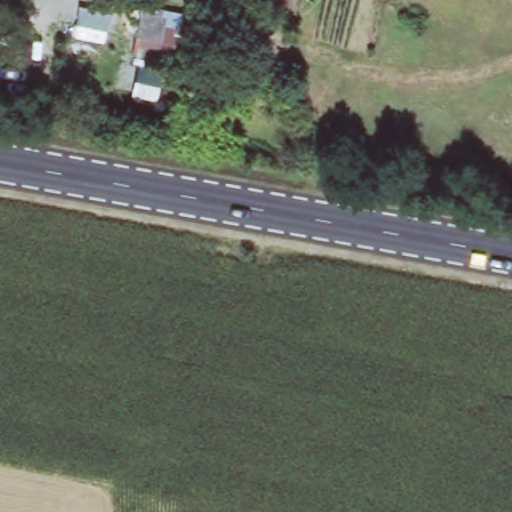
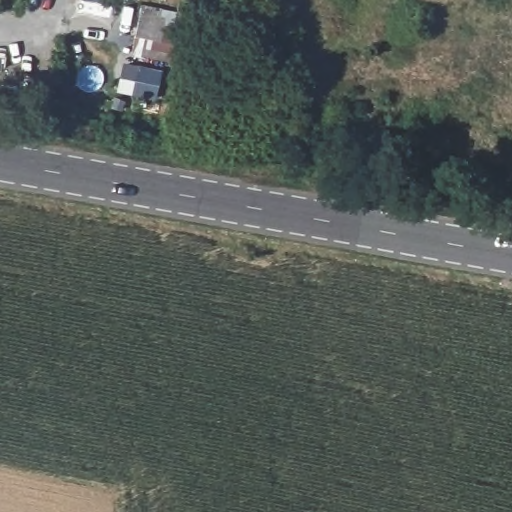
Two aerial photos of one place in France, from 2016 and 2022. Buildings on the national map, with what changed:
unchanged [(139,2),(183,10),(174,63),(129,54),(139,2)]
unchanged [(196,7),(224,12),(219,38),(191,35),(196,7)]

